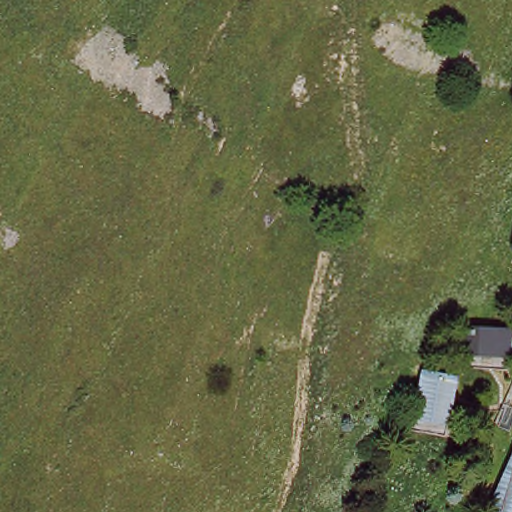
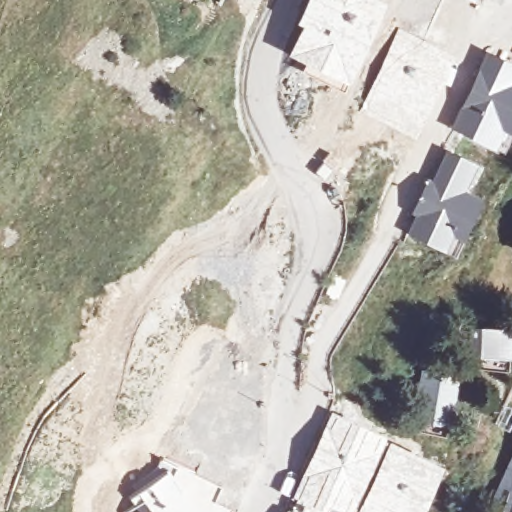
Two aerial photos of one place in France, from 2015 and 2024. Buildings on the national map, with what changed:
new [(295,22),(305,0),(385,0),(342,87),(301,69),(304,63),(287,54),(300,24),(295,22)]
new [(397,26),(452,52),(441,81),(414,135),(359,108),(397,26)]
new [(485,50),(512,63),(512,82),(512,83),(512,84),(512,124),(508,133),(497,149),(450,126),(485,50)]
new [(455,256),(402,230),(430,175),(454,188),(457,183),(484,195),(455,256)]
unchanged [(510,233),(512,228),(512,234),(510,233)]
unchanged [(505,323),(502,352),(462,348),(465,319),(505,323)]
unchanged [(450,379),(444,421),(413,416),(418,375),(450,379)]
new [(286,472),(297,477),(329,408),(386,431),(384,437),(352,512),(330,512),(290,496),(279,491),(286,472)]
new [(384,437),(442,465),(419,512),(352,512),(384,437)]
unchanged [(512,439),(512,512),(500,512),(483,506),(512,439)]
new [(135,506),(129,499),(158,474),(155,470),(163,458),(220,486),(214,500),(232,509),(231,512),(127,512),(135,506)]
new [(290,496),(330,512),(283,512),(290,496)]

